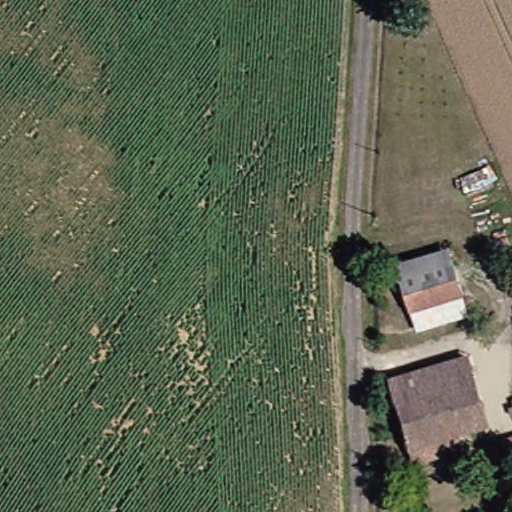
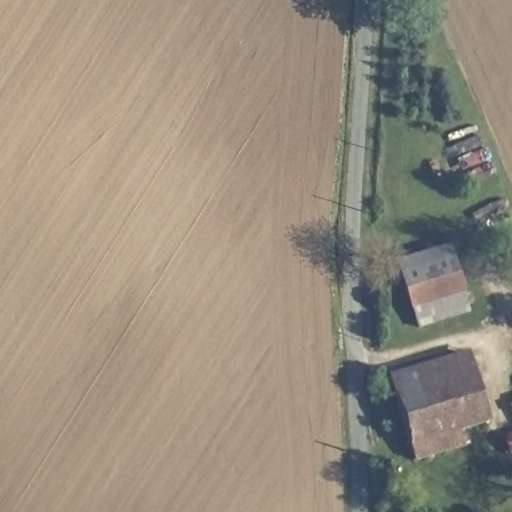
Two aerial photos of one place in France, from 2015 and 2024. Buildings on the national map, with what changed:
unchanged [(402,313),(389,265),(408,259),(435,249),(440,261),(453,296),(402,313)]
unchanged [(484,429),(407,452),(388,383),(462,361),(484,429)]
unchanged [(504,446),(512,443),(512,459),(507,460),(504,446)]

